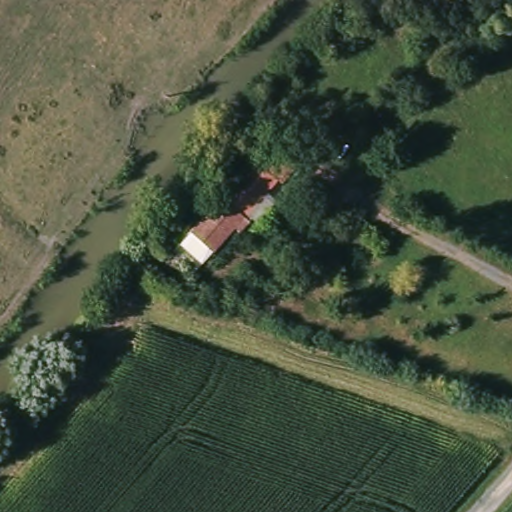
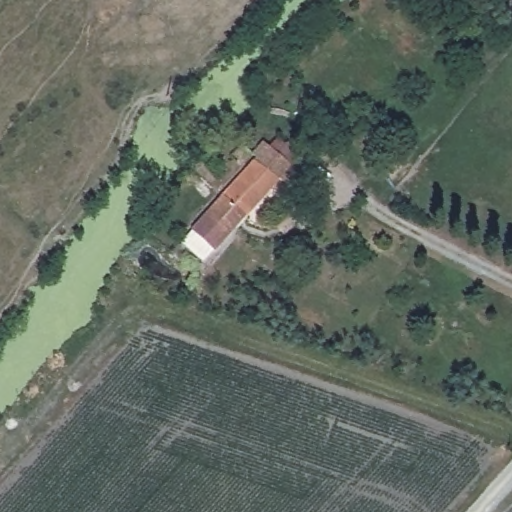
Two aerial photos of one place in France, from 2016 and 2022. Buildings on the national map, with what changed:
unchanged [(187,242),(259,158),(277,170),(284,176),(276,187),(213,263),(187,242)]

